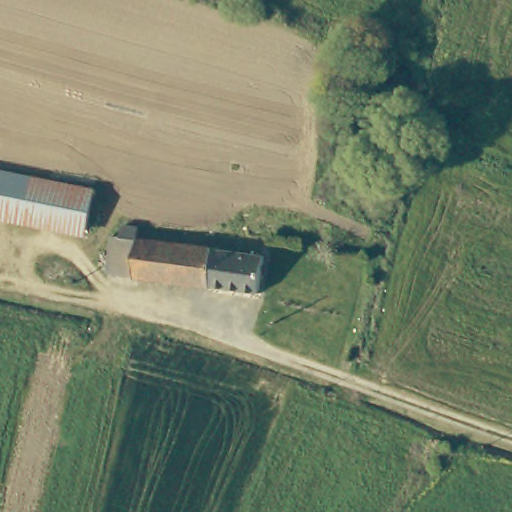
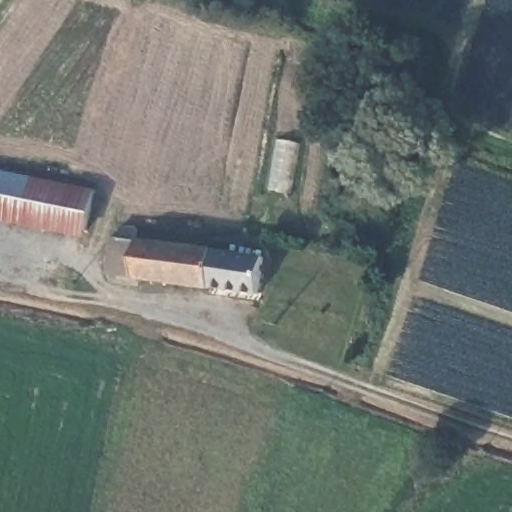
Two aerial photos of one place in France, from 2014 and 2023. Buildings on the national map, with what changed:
unchanged [(0,175),(99,197),(102,197),(104,198),(97,239),(84,236),(0,218),(0,175)]
unchanged [(244,296),(218,293),(114,281),(117,244),(137,246),(137,233),(151,235),(151,246),(222,254),(247,257),(244,296)]

